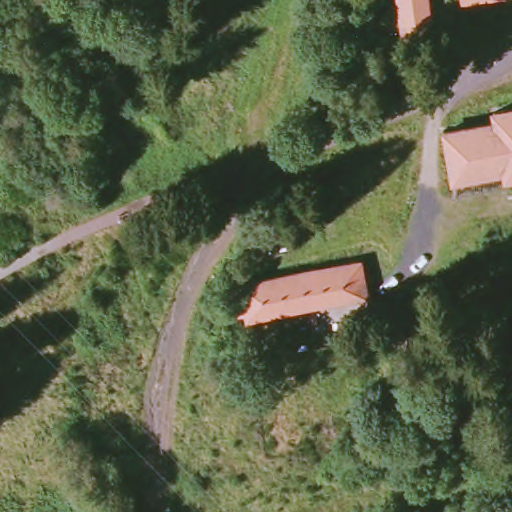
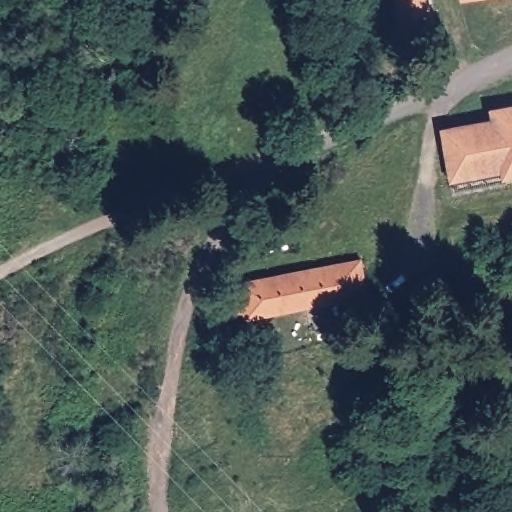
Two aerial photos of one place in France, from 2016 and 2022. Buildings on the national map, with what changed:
unchanged [(431,0),(434,24),(402,26),(398,0),(431,0)]
unchanged [(487,0),(463,3),(463,0),(487,0)]
unchanged [(490,123),(488,106),(512,104),(512,177),(508,178),(505,170),(448,179),(440,130),(490,123)]
unchanged [(362,257),(367,299),(247,319),(244,308),(235,312),(230,295),(240,293),(235,280),(362,257)]

